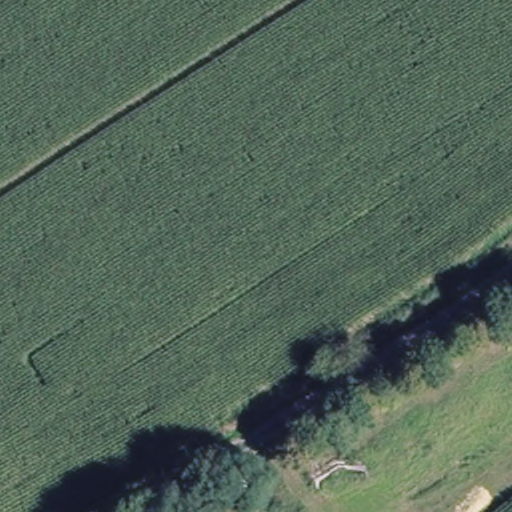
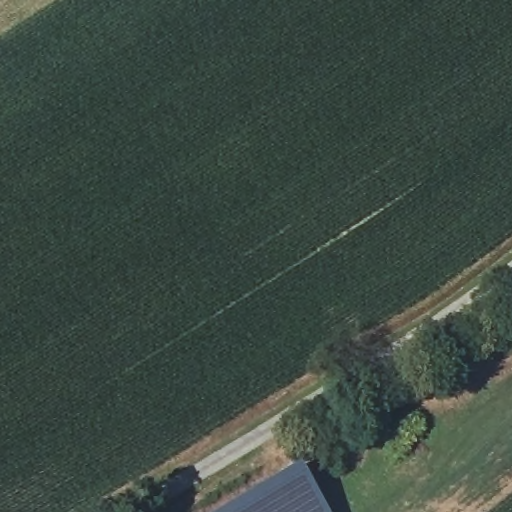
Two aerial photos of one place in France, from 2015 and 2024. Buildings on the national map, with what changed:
new [(220,512),(297,465),(325,512),(220,512)]

